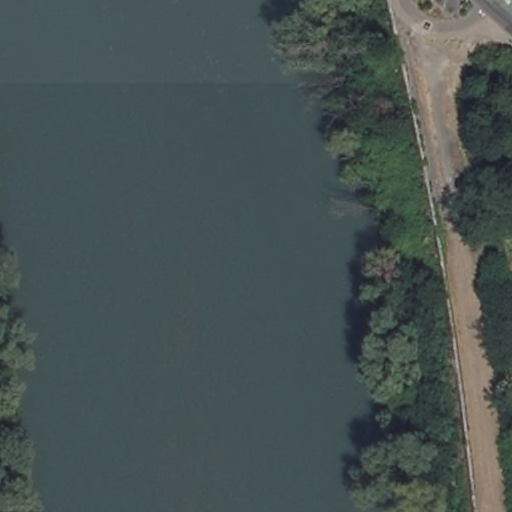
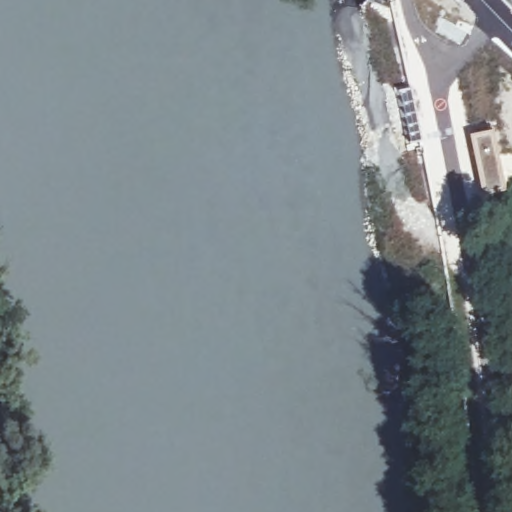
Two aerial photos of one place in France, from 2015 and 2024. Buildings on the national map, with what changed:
new [(509,194),(484,199),(470,136),(496,131),(509,194)]

